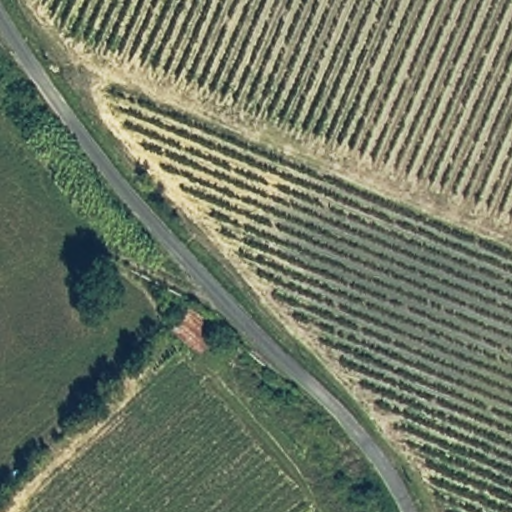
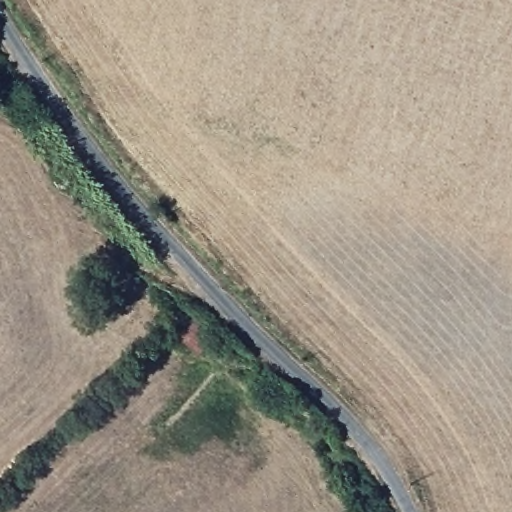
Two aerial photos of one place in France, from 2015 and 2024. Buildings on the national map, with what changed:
unchanged [(188,305),(218,328),(200,353),(168,327),(188,305)]

